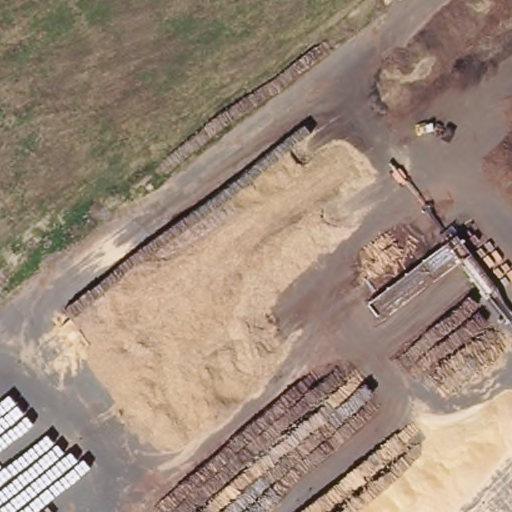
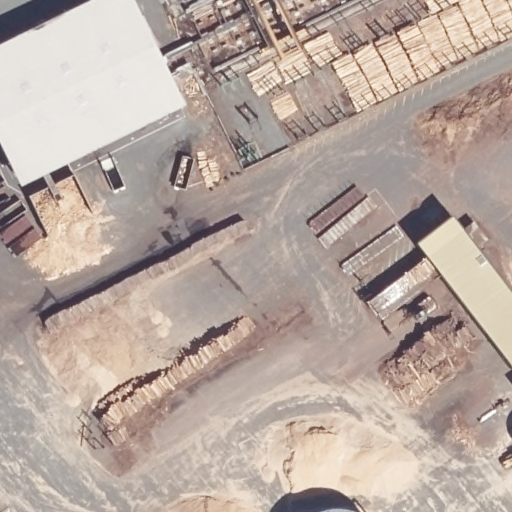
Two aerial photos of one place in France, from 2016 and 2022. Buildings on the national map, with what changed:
new [(185,107),(21,190),(0,147),(0,45),(93,0),(133,0),(185,107)]

